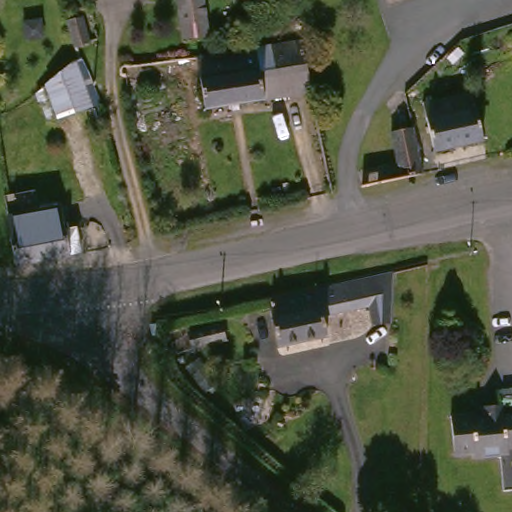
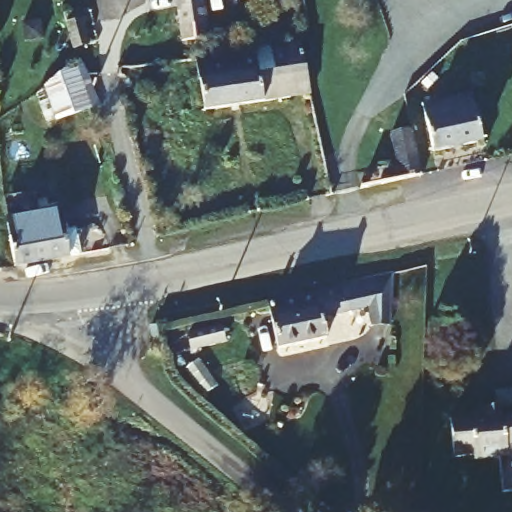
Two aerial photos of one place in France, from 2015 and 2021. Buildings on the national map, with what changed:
unchanged [(183,39),(175,0),(203,0),(209,34),(183,39)]
unchanged [(233,0),(251,0),(234,4),(233,0)]
unchanged [(302,71),(306,93),(280,96),(198,111),(188,63),(229,54),(296,41),(302,71)]
unchanged [(103,105),(51,124),(39,93),(72,62),(81,58),(103,105)]
unchanged [(476,139),(431,149),(422,110),(468,99),(476,139)]
unchanged [(363,191),(358,170),(395,161),(389,136),(406,133),(418,177),(363,191)]
unchanged [(64,225),(72,225),(74,251),(67,253),(68,264),(26,269),(9,273),(4,211),(63,210),(64,225)]
unchanged [(371,325),(368,308),(321,315),(324,340),(276,351),(266,304),(316,290),(387,273),(383,322),(371,325)]
unchanged [(189,354),(186,336),(218,329),(221,347),(189,354)]
unchanged [(497,494),(493,461),(449,464),(444,424),(474,422),(474,410),(487,409),(487,395),(512,393),(512,493),(497,494)]

